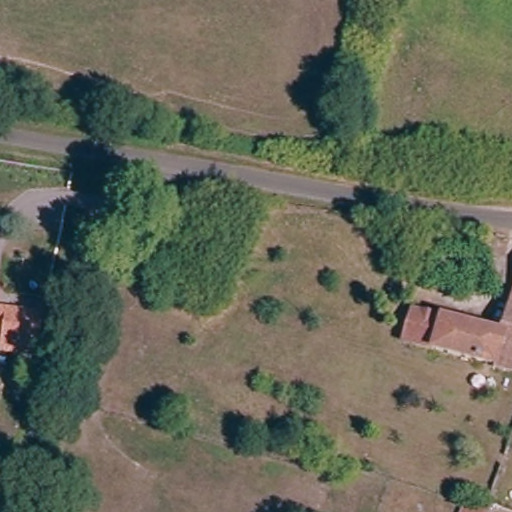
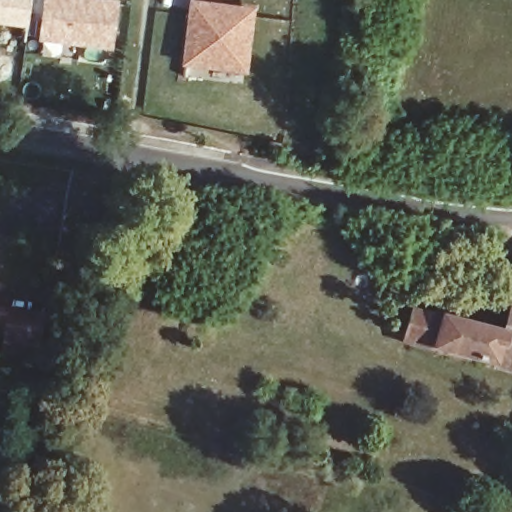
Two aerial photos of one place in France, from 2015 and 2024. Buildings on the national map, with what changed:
new [(28,0),(25,20),(0,17),(0,0),(28,0)]
new [(67,0),(114,5),(109,49),(41,41),(46,0),(67,0)]
new [(216,8),(251,12),(245,71),(184,64),(191,5),(208,7),(216,8)]
unchanged [(400,344),(410,314),(501,338),(512,305),(512,376),(493,370),(400,344)]
unchanged [(40,319),(37,341),(7,337),(8,327),(0,325),(0,315),(40,319)]

